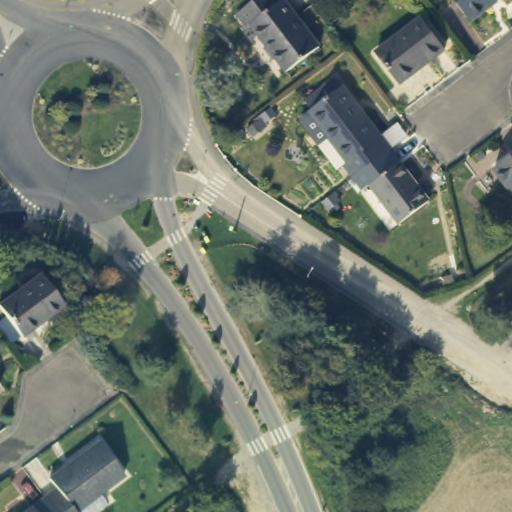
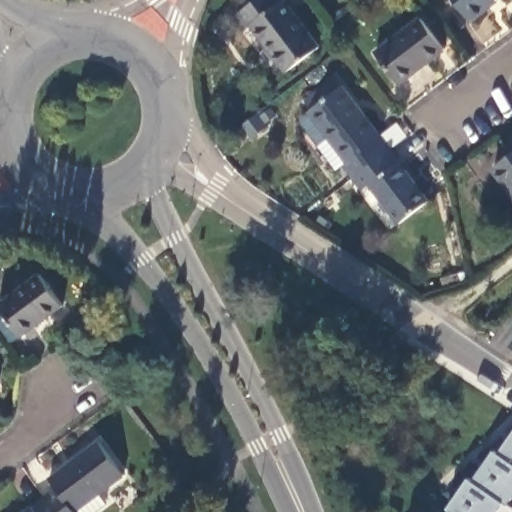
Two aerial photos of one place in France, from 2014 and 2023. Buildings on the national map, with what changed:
unchanged [(291,69),(255,24),(252,25),(241,10),(255,0),(289,0),(322,44),(291,69)]
unchanged [(490,4),(471,19),(457,0),(489,0),(488,1),(490,4)]
unchanged [(425,18),(448,48),(403,82),(380,53),(425,18)]
unchanged [(340,169),(322,145),(305,123),(305,116),(314,109),(315,109),(309,100),(338,78),(345,86),(395,149),(357,176),(347,164),(340,169)]
unchanged [(512,159),(512,183),(500,168),(512,159)]
unchanged [(433,201),(403,222),(376,184),(405,163),(433,201)]
unchanged [(41,269),(67,302),(25,335),(1,302),(41,269)]
unchanged [(9,386),(0,392),(0,375),(9,386)]
new [(512,508),(512,512),(450,512),(445,509),(468,478),(472,481),(495,450),(500,453),(512,434),(512,502),(510,506),(512,508)]
unchanged [(63,491),(55,480),(106,443),(127,472),(101,491),(109,502),(95,512),(59,512),(50,501),(63,491)]
unchanged [(50,501),(59,512),(34,512),(50,501)]

